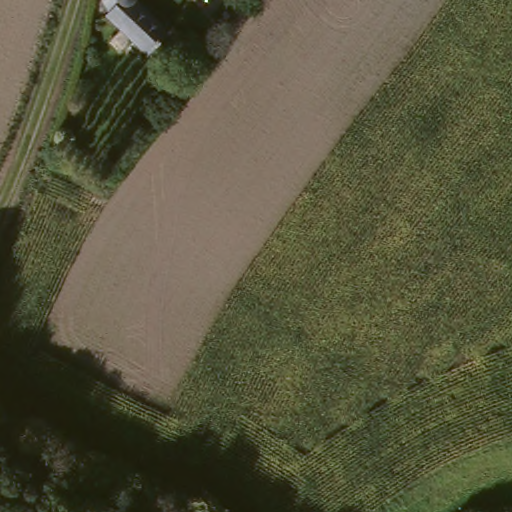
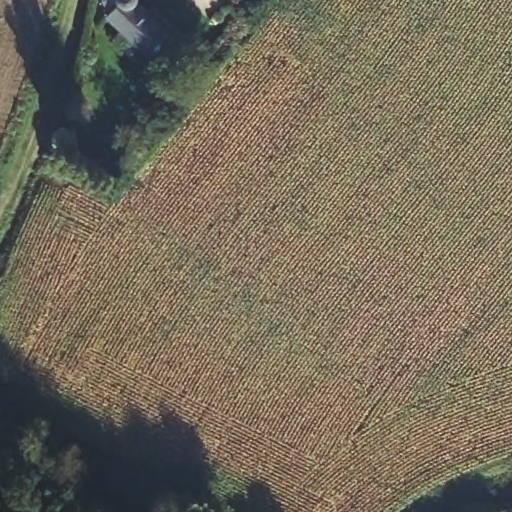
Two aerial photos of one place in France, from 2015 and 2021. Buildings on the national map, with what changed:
unchanged [(167,38),(144,61),(101,19),(120,0),(128,0),(167,38)]

